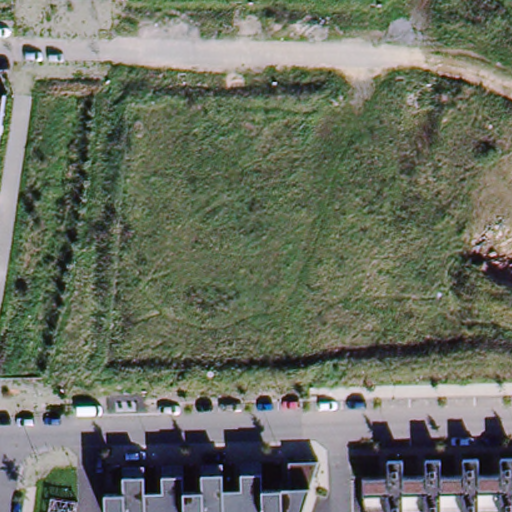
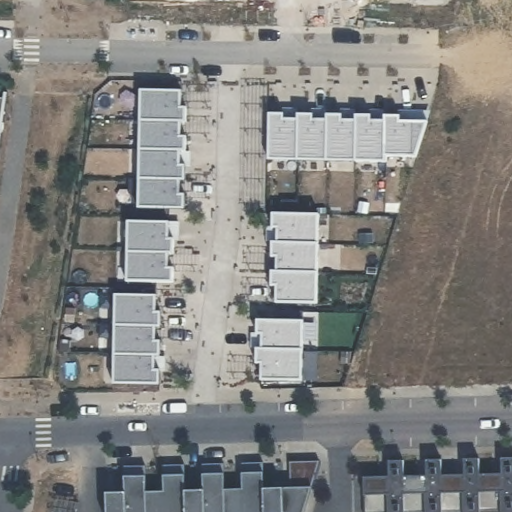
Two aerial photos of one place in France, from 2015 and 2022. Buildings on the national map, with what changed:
new [(139,90),(181,92),(180,108),(185,108),(185,122),(179,122),(179,137),(185,137),(184,151),(178,150),(179,166),(184,166),(184,180),(177,180),(177,195),(184,194),(184,209),(138,208),(139,90)]
unchanged [(0,139),(0,99),(5,99),(0,139)]
new [(384,154),(384,161),(268,159),(268,114),(283,114),(283,119),(297,120),(297,115),(312,115),(312,120),(326,120),(326,115),(341,116),(341,121),(355,121),(355,115),(370,116),(370,121),(384,121),(383,116),(399,116),(399,122),(425,123),(413,155),(384,154)]
new [(276,302),(276,286),(272,286),(271,271),(276,271),(277,256),(271,256),(272,242),(276,242),(276,228),(272,227),(272,213),(317,215),(314,302),(276,302)]
new [(167,222),(166,240),(172,240),(171,253),(165,253),(166,268),(170,269),(170,280),(125,280),(127,222),(167,222)]
new [(114,295),(154,295),(155,313),(160,313),(160,327),(153,327),(153,340),(160,340),(159,356),(154,355),(153,371),(159,371),(159,383),(113,383),(114,325),(114,295)]
new [(300,379),(260,379),(261,363),(255,362),(256,348),(262,348),(262,334),(256,334),(256,320),(301,320),(300,379)]
unchanged [(387,461),(400,461),(403,461),(403,478),(425,477),(425,460),(441,460),(441,478),(463,477),(462,460),(479,460),(479,475),(500,475),(499,458),(512,458),(512,512),(365,512),(366,500),(365,477),(387,476),(387,461)]
unchanged [(163,477),(184,477),(185,493),(202,492),(204,477),(223,476),(225,490),(242,489),(241,477),(265,476),(266,489),(302,487),(302,512),(107,512),(107,494),(122,494),(123,480),(144,479),(145,493),(163,492),(163,477)]

